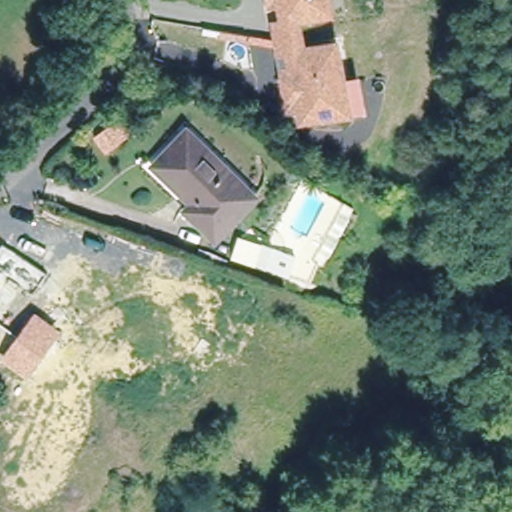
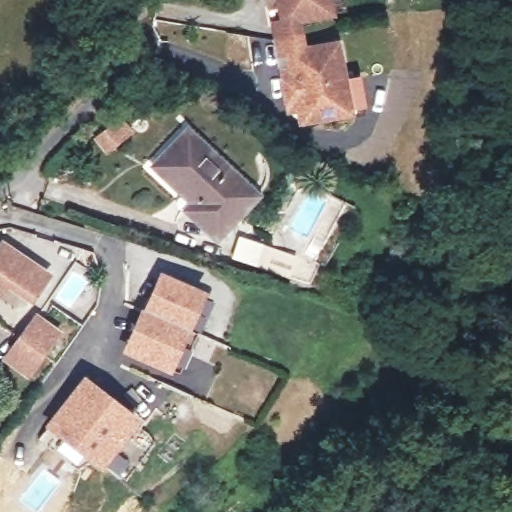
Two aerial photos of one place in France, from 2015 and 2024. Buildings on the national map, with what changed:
unchanged [(331,16),(302,21),(283,24),(279,5),(270,8),(269,0),(344,0),(346,13),(331,16)]
unchanged [(302,21),(304,35),(306,50),(287,53),(292,90),(290,91),(293,112),(288,113),(275,40),(273,26),(283,24),(302,21)]
unchanged [(298,111),(293,112),(290,91),(292,90),(287,53),(306,50),(337,45),(349,115),(324,119),(300,124),(298,111)]
unchanged [(255,195),(216,237),(188,210),(195,203),(156,166),(187,132),(255,195)]
unchanged [(254,265),(234,258),(241,237),(262,244),(274,248),(266,269),(254,265)]
new [(1,239),(53,273),(32,305),(6,290),(1,299),(0,298),(0,241),(1,239)]
unchanged [(300,252),(292,273),(271,265),(279,244),(300,252)]
new [(206,290),(170,374),(120,351),(161,269),(206,290)]
unchanged [(62,330),(27,381),(0,360),(0,358),(35,311),(62,330)]
new [(87,377),(138,416),(105,459),(53,419),(87,377)]

